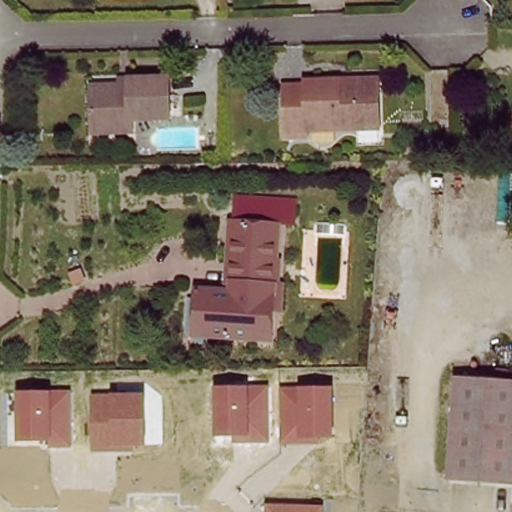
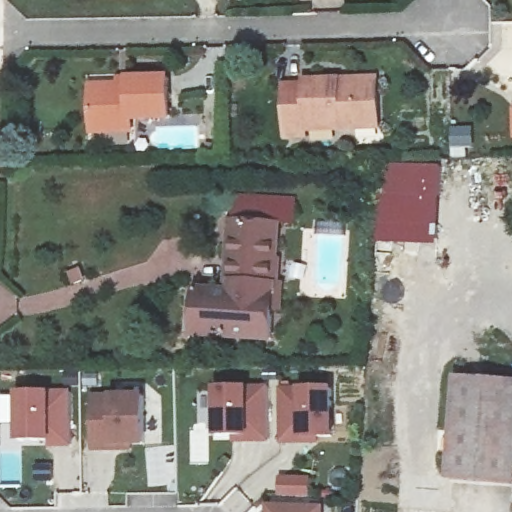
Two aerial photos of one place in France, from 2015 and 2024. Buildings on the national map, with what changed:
unchanged [(94,129),(94,121),(95,80),(123,81),(123,74),(134,74),(175,75),(174,117),(132,116),(133,122),(133,129),(94,129)]
unchanged [(283,130),(283,86),(304,86),(304,79),(341,79),(375,79),(375,87),(375,130),(333,130),(303,130),(283,130)]
new [(473,125),(474,147),(468,147),(469,157),(451,158),(449,126),(473,125)]
new [(384,164),(441,164),(437,244),(376,242),(384,164)]
unchanged [(234,221),(235,197),(297,201),(296,226),(280,226),(242,224),(234,221)]
unchanged [(199,287),(213,288),(238,291),(242,224),(280,226),(278,256),(283,256),(279,295),(272,295),(269,340),(211,337),(195,336),(199,287)]
unchanged [(455,378),(512,382),(512,484),(448,481),(455,378)]
unchanged [(271,443),(236,444),(237,437),(217,437),(217,388),(251,387),(269,387),(271,443)]
unchanged [(334,441),(321,441),(321,445),(284,445),(283,390),(300,388),(334,389),(334,441)]
unchanged [(73,448),(51,449),(53,441),(20,442),(19,392),(53,392),(72,392),(73,448)]
unchanged [(147,448),(135,448),(135,452),(96,452),(95,396),(113,395),(145,395),(147,448)]
unchanged [(324,512),(267,512),(267,505),(325,507),(324,512)]

